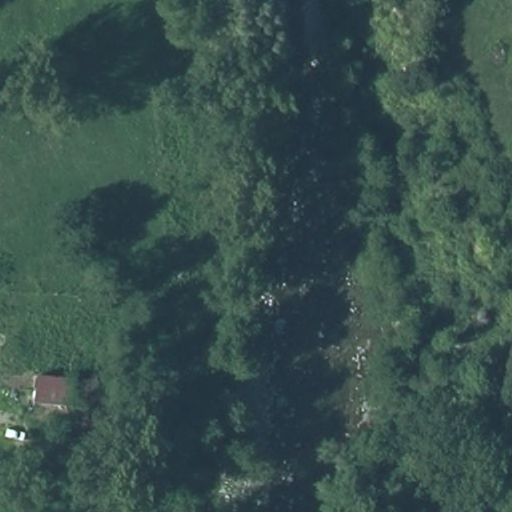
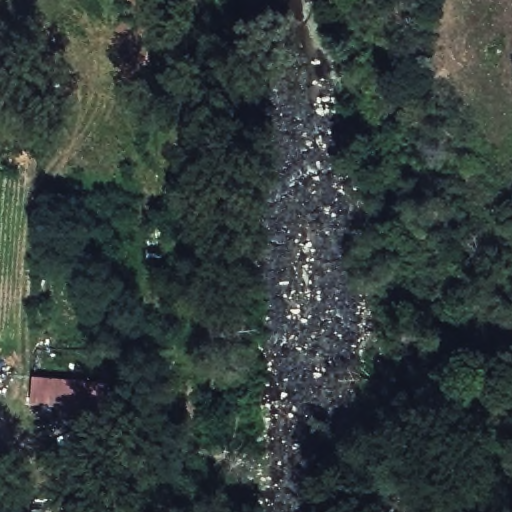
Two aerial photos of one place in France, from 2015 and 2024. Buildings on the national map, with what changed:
unchanged [(30,405),(32,376),(73,379),(71,408),(30,405)]

